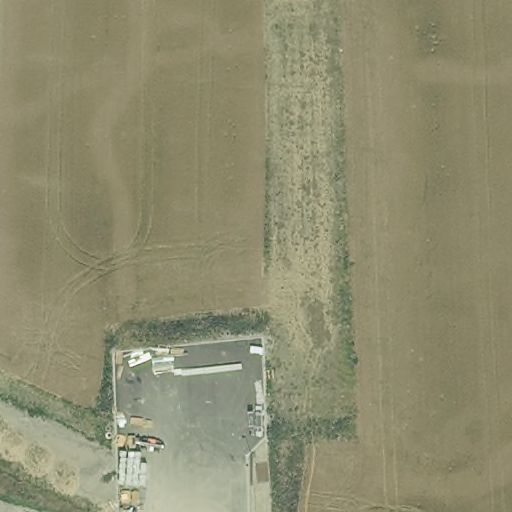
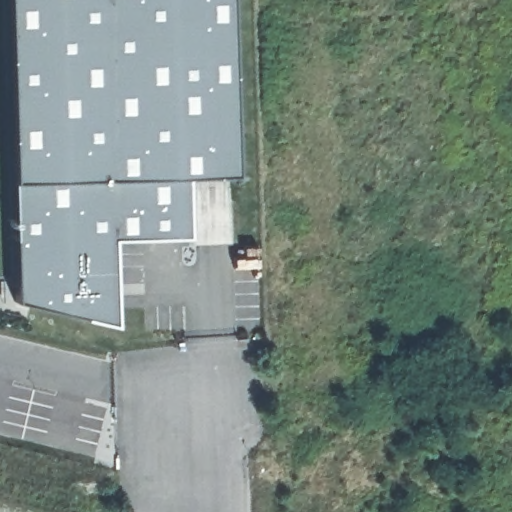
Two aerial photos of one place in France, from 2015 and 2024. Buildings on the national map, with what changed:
new [(185,170),(186,230),(112,232),(115,320),(13,295),(4,0),(228,0),(233,168),(185,170)]

